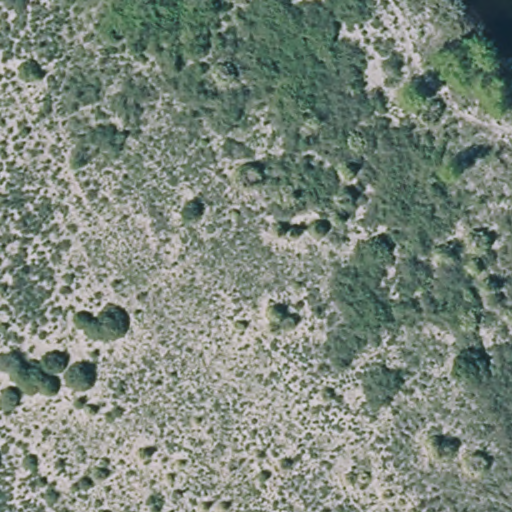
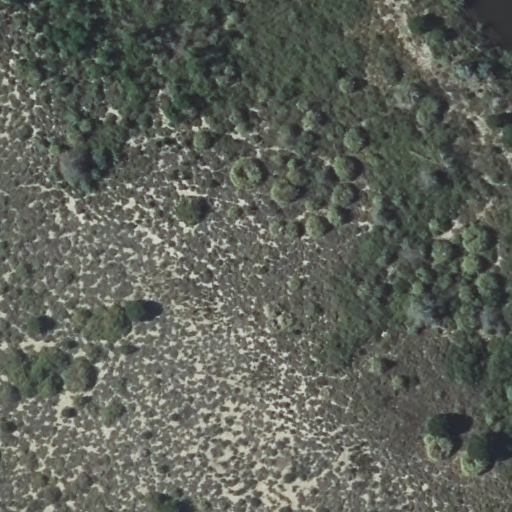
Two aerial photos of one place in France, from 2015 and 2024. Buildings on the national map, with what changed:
[]

